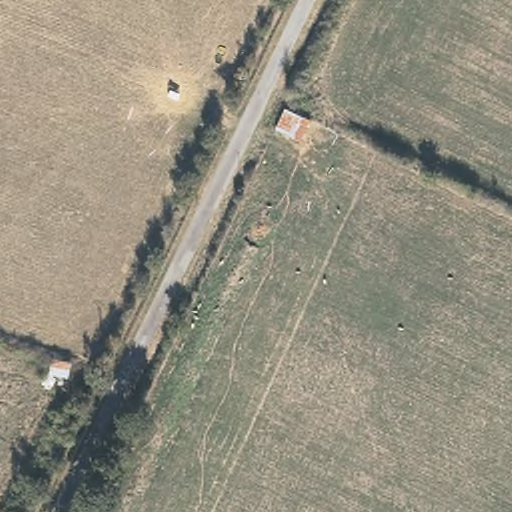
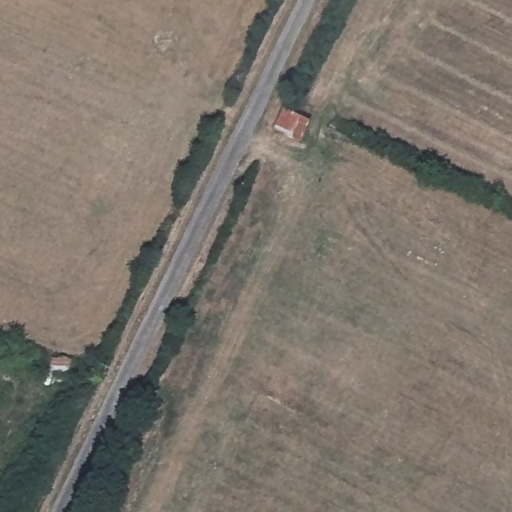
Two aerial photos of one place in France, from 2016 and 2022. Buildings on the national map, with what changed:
unchanged [(281,106),(300,115),(292,134),(271,126),(281,106)]
unchanged [(50,356),(67,363),(56,390),(38,383),(50,356)]

